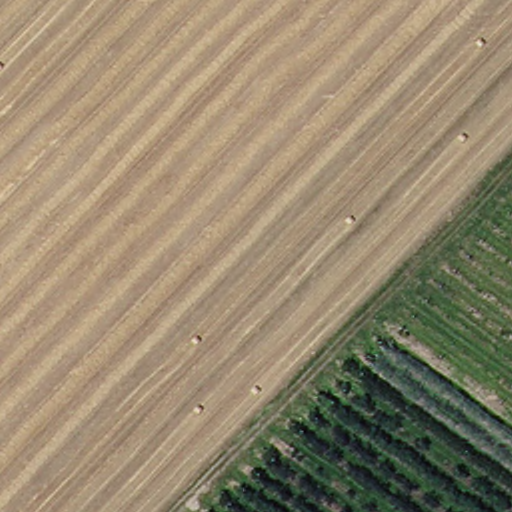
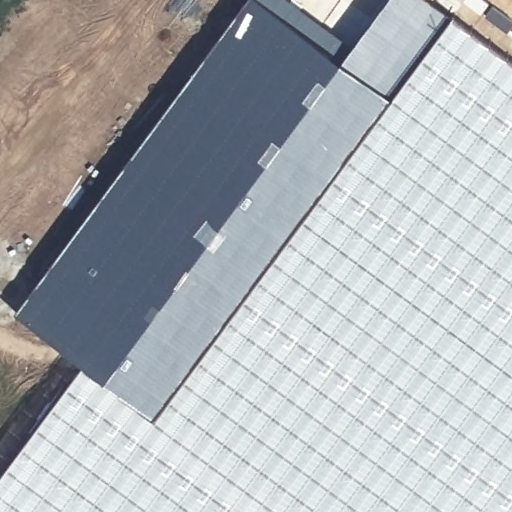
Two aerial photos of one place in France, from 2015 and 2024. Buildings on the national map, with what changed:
new [(295,0),(355,44),(388,0),(434,0),(453,14),(156,417),(83,361),(17,311),(249,0),(295,0)]
new [(156,417),(453,14),(512,58),(512,512),(0,512),(0,475),(83,361),(156,417)]

